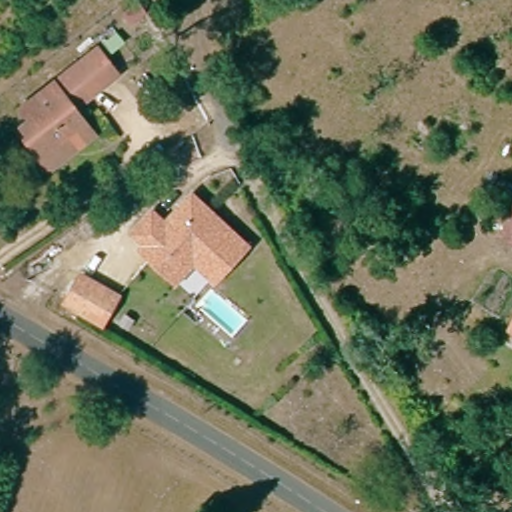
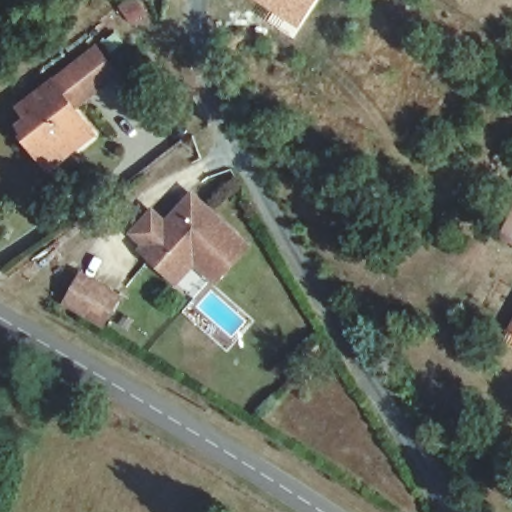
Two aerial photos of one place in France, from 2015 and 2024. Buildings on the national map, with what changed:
unchanged [(135,16),(125,1),(126,0),(143,0),(148,7),(135,16)]
new [(265,20),(271,11),(254,0),(316,0),(292,38),(265,20)]
unchanged [(93,47),(115,75),(87,96),(65,69),(93,47)]
unchanged [(36,159),(20,140),(24,137),(15,126),(25,118),(17,107),(65,69),(87,96),(71,109),(91,133),(72,148),(44,170),(36,159)]
unchanged [(192,259),(178,274),(169,265),(129,229),(150,206),(163,218),(181,198),(199,197),(245,239),(218,269),(211,276),(192,259)]
unchanged [(512,215),(512,233),(505,230),(512,215)]
unchanged [(106,320),(68,298),(83,271),(122,292),(106,320)]
unchanged [(512,323),(512,332),(508,330),(512,323)]

